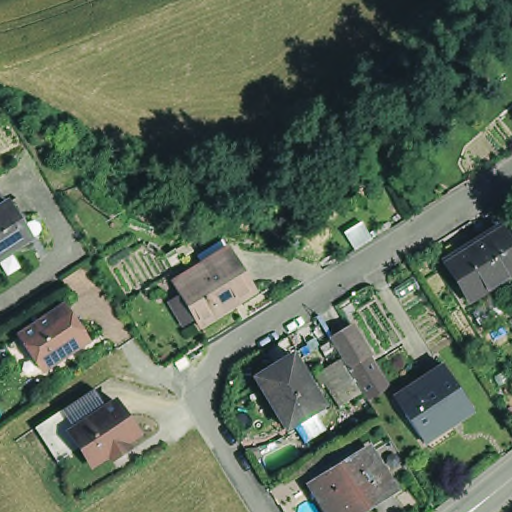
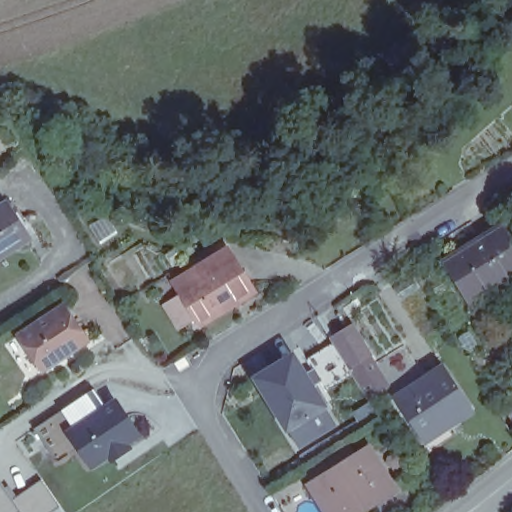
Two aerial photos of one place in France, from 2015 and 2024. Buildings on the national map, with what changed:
unchanged [(0,266),(0,218),(13,210),(35,244),(0,266)]
demolished [(363,223),(373,241),(372,242),(356,251),(346,234),(363,223)]
unchanged [(501,234),(512,252),(512,281),(472,307),(447,267),(501,234)]
unchanged [(172,288),(227,255),(250,293),(195,327),(172,288)]
unchanged [(66,306),(89,341),(43,372),(20,337),(66,306)]
unchanged [(370,396),(362,383),(350,364),(349,362),(333,336),(351,325),(369,352),(390,384),(370,396)]
unchanged [(306,442),(295,425),(289,429),(257,378),(295,356),(326,406),(315,412),(326,430),(306,442)]
unchanged [(445,367),(475,412),(426,444),(396,399),(445,367)]
unchanged [(107,408),(75,430),(74,431),(80,440),(83,446),(80,448),(81,448),(59,463),(36,430),(95,390),(108,408),(107,408)]
unchanged [(140,436),(128,444),(128,445),(129,447),(130,448),(130,449),(129,450),(128,451),(128,452),(127,452),(126,453),(126,454),(125,454),(125,455),(123,455),(122,455),(121,455),(120,455),(120,454),(119,454),(118,453),(117,453),(117,452),(116,452),(110,457),(108,454),(92,466),(81,448),(80,448),(83,446),(80,440),(74,431),(75,430),(107,408),(108,408),(117,402),(140,436)]
unchanged [(392,496),(366,512),(321,512),(307,490),(365,453),(392,496)]
new [(42,480),(59,506),(51,512),(0,512),(0,486),(11,501),(42,480)]

